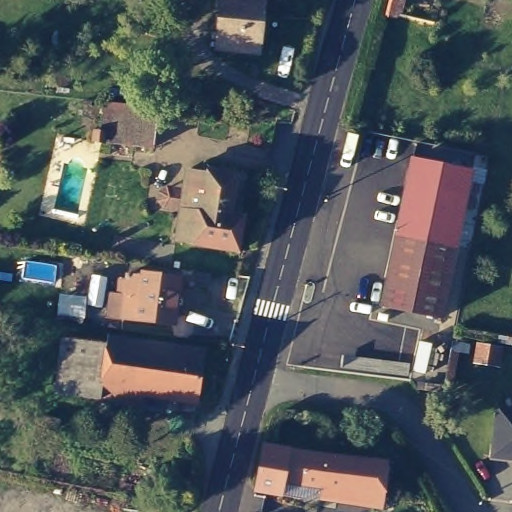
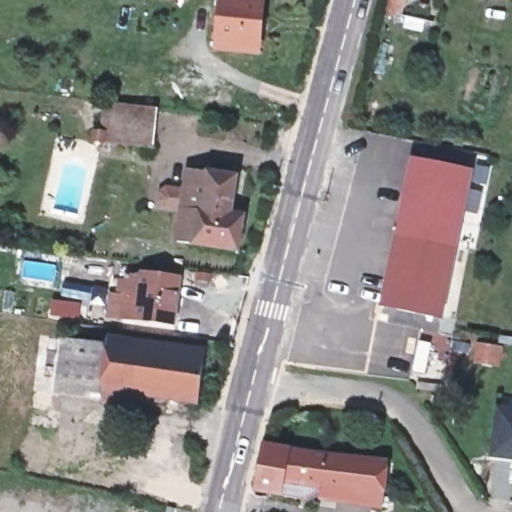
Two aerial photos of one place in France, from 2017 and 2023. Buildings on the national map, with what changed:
unchanged [(217,33),(223,33),(225,6),(220,6),(221,0),(269,0),(263,53),(222,49),(222,39),(217,39),(217,33)]
unchanged [(144,153),(97,147),(98,136),(96,136),(99,107),(148,113),(144,153)]
unchanged [(442,318),(382,306),(399,215),(404,216),(407,206),(401,205),(412,159),(472,171),(442,318)]
unchanged [(235,246),(173,237),(178,205),(159,202),(154,195),(155,187),(162,182),(182,185),(185,165),(232,172),(226,209),(240,212),(235,246)]
unchanged [(70,276),(53,274),(55,263),(72,266),(70,276)]
unchanged [(172,307),(171,317),(170,324),(103,315),(106,293),(113,294),(115,279),(122,280),(122,275),(137,277),(137,274),(175,278),(173,296),(178,297),(177,307),(172,307)]
unchanged [(193,404),(162,399),(161,407),(50,392),(58,336),(102,342),(103,336),(200,350),(193,404)]
unchanged [(494,405),(512,408),(512,454),(488,450),(489,444),(494,405)]
unchanged [(77,433),(33,425),(35,414),(80,422),(77,433)]
unchanged [(272,499),(273,494),(255,491),(263,446),(387,463),(380,509),(370,508),(372,498),(320,490),(302,499),(282,496),(280,495),(280,500),(272,499)]

